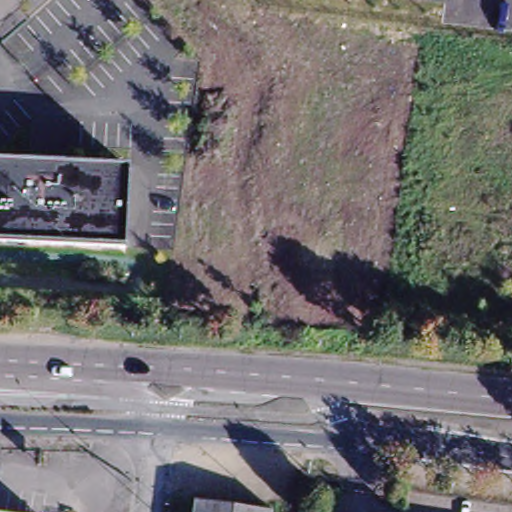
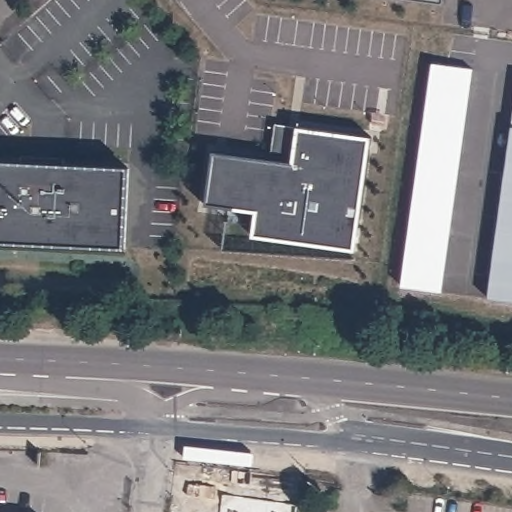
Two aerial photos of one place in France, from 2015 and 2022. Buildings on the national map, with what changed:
unchanged [(444,1),(436,0),(445,0),(444,1)]
new [(474,67),(443,293),(402,289),(432,63),(474,67)]
new [(293,162),(271,160),(276,124),(298,127),(293,162)]
new [(489,299),(512,126),(512,302),(489,299)]
new [(293,162),(298,127),(372,137),(356,252),(253,237),(256,213),(205,206),(213,151),(293,162)]
unchanged [(0,242),(0,162),(26,164),(26,157),(70,159),(69,166),(133,169),(130,248),(0,242)]
demolished [(194,512),(196,502),(268,512),(194,512)]

